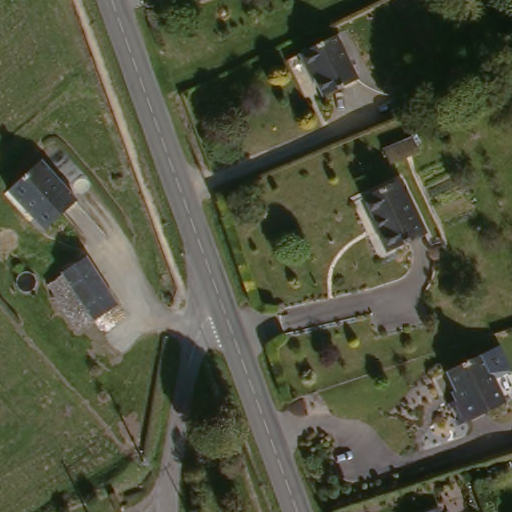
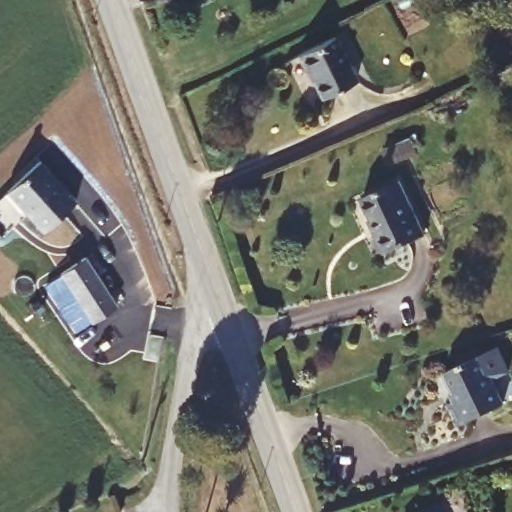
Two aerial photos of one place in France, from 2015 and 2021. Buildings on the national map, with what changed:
unchanged [(353,80),(317,96),(304,67),(302,67),(294,50),(333,34),(353,80)]
unchanged [(417,152),(387,164),(383,150),(412,139),(417,152)]
unchanged [(79,203),(45,235),(9,196),(41,165),(79,203)]
unchanged [(374,237),(377,236),(361,201),(398,183),(425,236),(396,246),(381,251),(374,237)]
unchanged [(56,278),(81,261),(114,307),(88,325),(56,278)]
unchanged [(503,402),(457,422),(447,398),(456,395),(445,368),(481,352),(503,402)]

